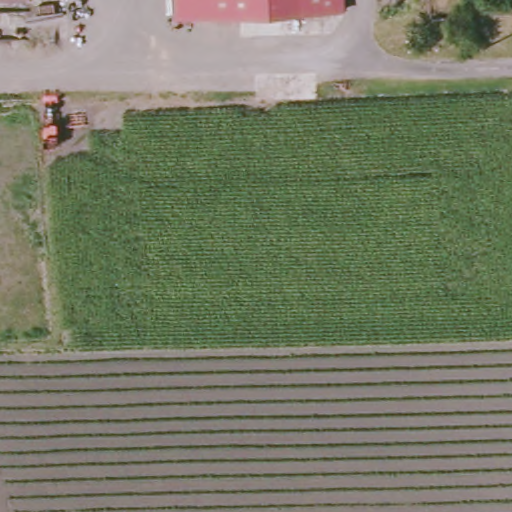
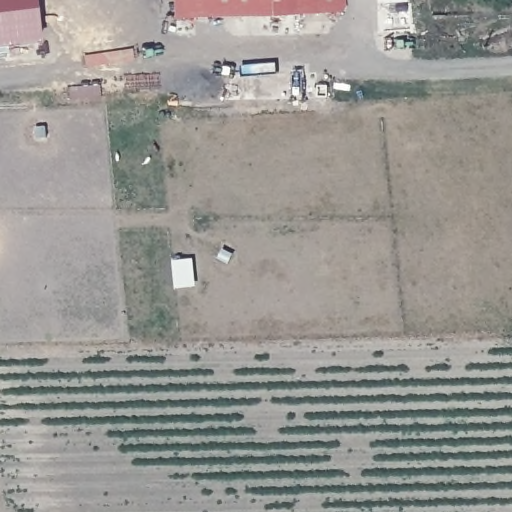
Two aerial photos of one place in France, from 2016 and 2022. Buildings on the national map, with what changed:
new [(0,42),(0,0),(37,0),(40,37),(0,42)]
unchanged [(346,0),(347,12),(170,19),(170,0),(346,0)]

